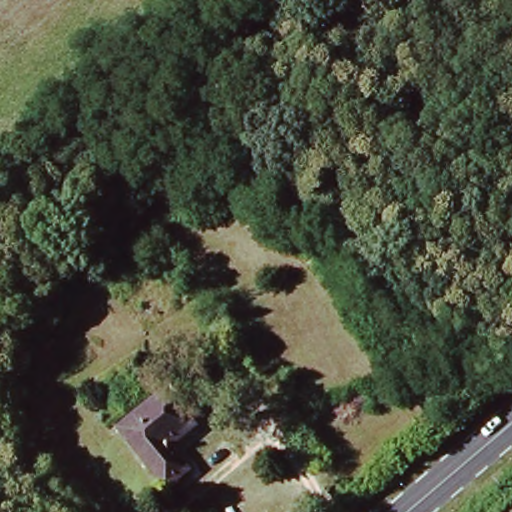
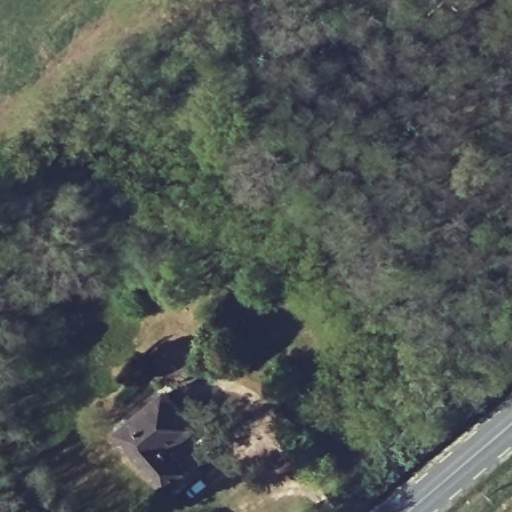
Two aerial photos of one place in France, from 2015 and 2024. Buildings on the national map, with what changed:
unchanged [(177,448),(195,468),(172,486),(124,427),(170,389),(202,428),(177,448)]

